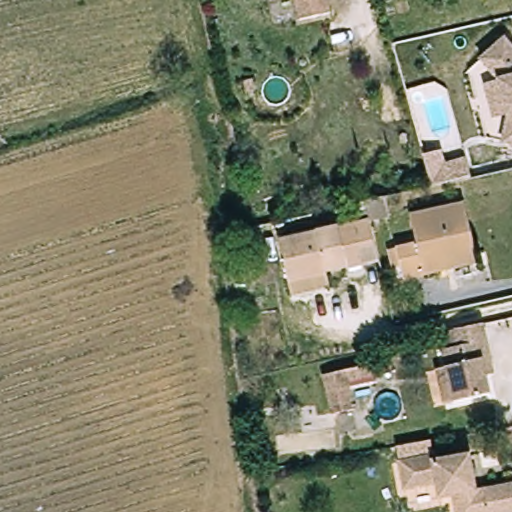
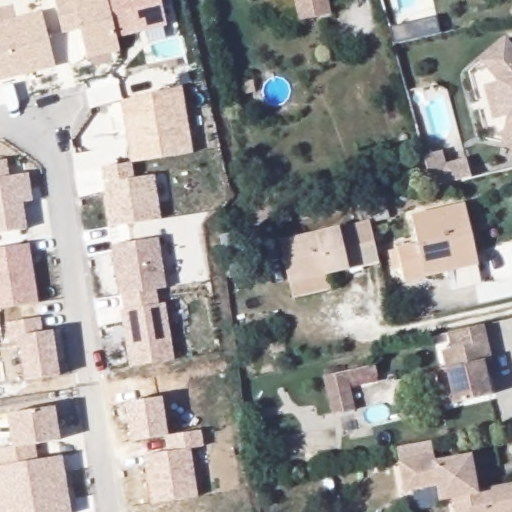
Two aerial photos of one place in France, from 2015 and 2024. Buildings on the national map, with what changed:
new [(166,25),(117,37),(120,50),(87,58),(80,29),(62,34),(56,0),(161,0),(166,25)]
unchanged [(266,1),(266,0),(272,0),(266,1)]
unchanged [(332,17),(301,24),(295,0),(328,0),(332,17)]
new [(55,65),(0,79),(0,22),(42,11),(55,65)]
unchanged [(484,57),(505,38),(512,45),(512,116),(503,118),(491,86),(505,81),(484,57)]
new [(181,86),(193,152),(131,162),(120,101),(181,86)]
new [(440,153),(443,167),(465,162),(470,179),(431,188),(422,156),(440,153)]
new [(6,160),(10,175),(29,173),(32,201),(23,203),(27,229),(0,233),(0,160),(6,160)]
new [(131,162),(135,177),(155,175),(160,218),(108,226),(103,194),(105,193),(102,169),(131,162)]
unchanged [(366,230),(361,210),(380,205),(385,225),(366,230)]
unchanged [(440,275),(404,283),(396,252),(420,246),(413,217),(467,205),(478,255),(481,265),(440,275)]
new [(240,276),(229,278),(220,236),(251,229),(256,251),(236,255),(240,276)]
unchanged [(277,252),(366,230),(375,267),(324,278),(328,293),(290,302),(287,287),(277,252)]
new [(158,237),(166,288),(156,290),(159,303),(165,302),(175,360),(129,367),(120,310),(123,310),(121,295),(118,295),(110,245),(158,237)]
new [(28,244),(38,303),(0,310),(0,249),(28,244)]
new [(40,317),(44,331),(53,330),(60,375),(25,380),(17,340),(9,342),(6,323),(40,317)]
unchanged [(442,346),(452,345),(450,333),(485,326),(493,361),(497,376),(486,379),(490,398),(456,405),(447,407),(436,363),(446,361),(442,346)]
unchanged [(375,362),(376,378),(356,384),(360,411),(338,417),(323,372),(375,362)]
new [(166,451),(164,436),(132,441),(125,401),(162,395),(168,435),(201,430),(204,446),(191,450),(198,495),(150,503),(143,456),(166,451)]
new [(60,439),(36,443),(38,458),(62,455),(71,512),(0,512),(0,449),(12,446),(7,414),(55,406),(60,439)]
unchanged [(479,499),(512,493),(512,512),(461,512),(459,502),(445,505),(441,486),(411,490),(407,462),(435,458),(435,465),(470,460),(472,461),(479,499)]

